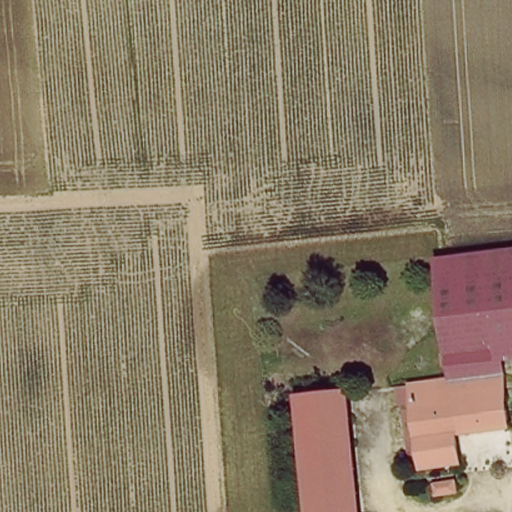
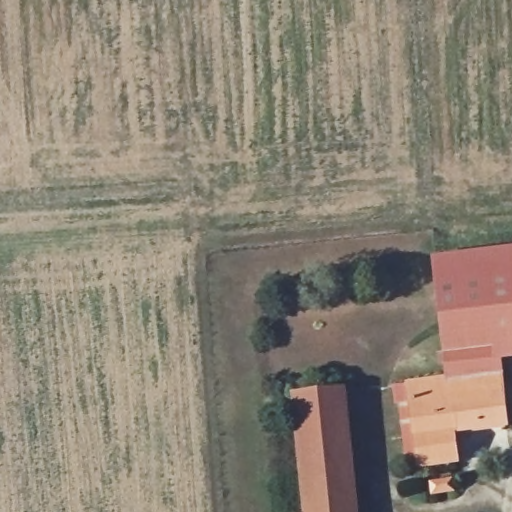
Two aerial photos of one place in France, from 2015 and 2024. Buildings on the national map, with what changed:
unchanged [(440,358),(432,261),(512,253),(512,350),(491,353),(488,353),(440,358)]
unchanged [(512,350),(512,373),(493,375),(491,353),(512,350)]
unchanged [(415,384),(443,382),(440,358),(488,353),(491,353),(493,375),(495,387),(500,426),(452,432),(457,464),(423,468),(415,384)]
unchanged [(423,468),(410,469),(403,384),(415,384),(423,468)]
unchanged [(301,394),(350,391),(361,512),(309,512),(301,394)]

